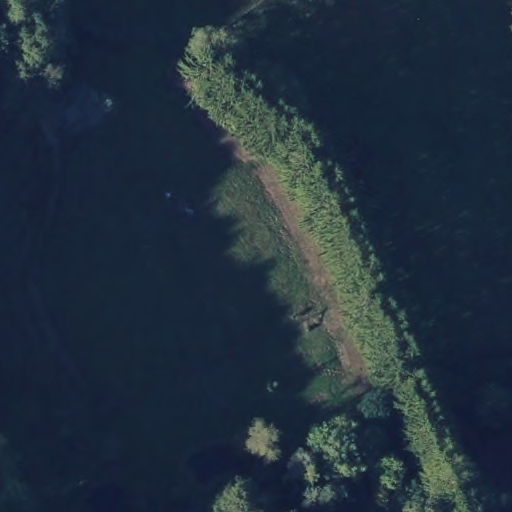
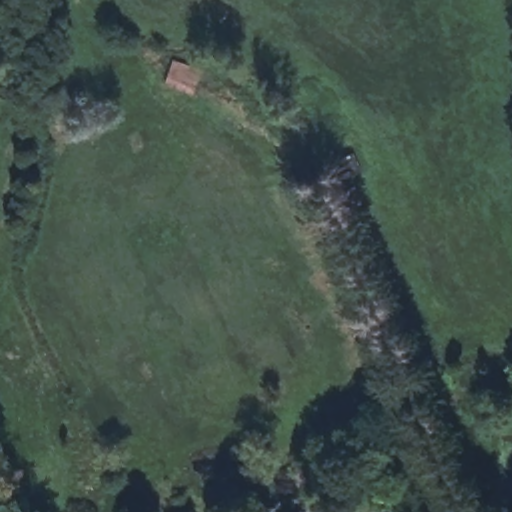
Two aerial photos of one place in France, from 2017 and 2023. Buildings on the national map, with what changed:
unchanged [(203,64),(198,94),(165,86),(172,58),(203,64)]

